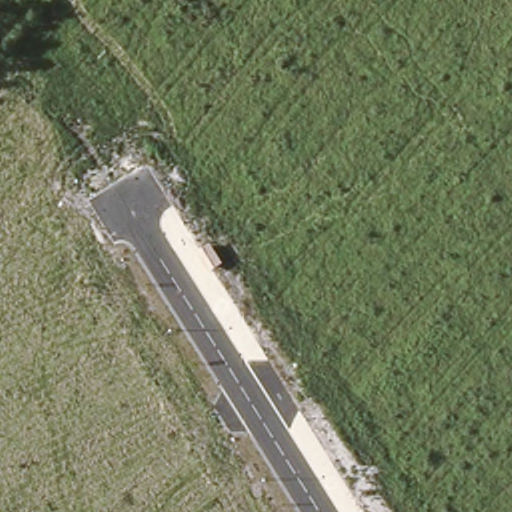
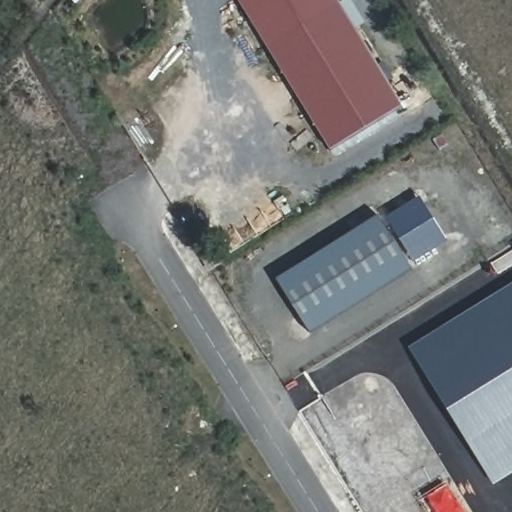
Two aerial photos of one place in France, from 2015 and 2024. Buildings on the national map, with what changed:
new [(269,48),(240,0),(337,0),(340,4),(403,106),(331,151),(269,48)]
new [(415,263),(387,219),(420,197),(448,242),(415,263)]
new [(375,218),(410,271),(307,337),(273,283),(375,218)]
new [(409,348),(512,284),(512,473),(494,485),(409,348)]

